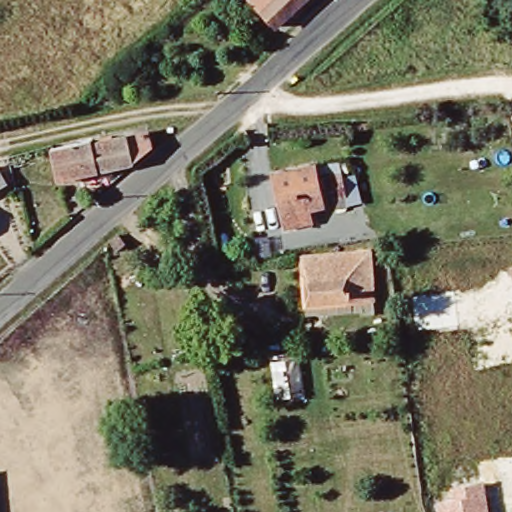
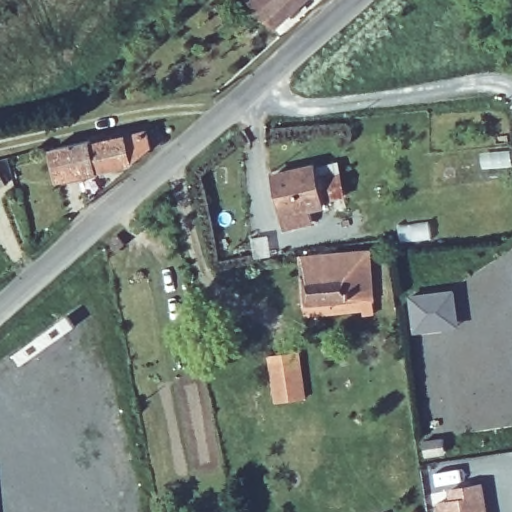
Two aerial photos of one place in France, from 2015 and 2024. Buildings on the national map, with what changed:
new [(251,0),(275,0),(262,12),(251,0)]
unchanged [(262,12),(275,0),(305,0),(276,27),(262,12)]
unchanged [(100,146),(156,135),(159,148),(139,165),(68,179),(62,148),(99,139),(100,146)]
unchanged [(299,223),(288,170),(329,162),(332,178),(355,173),(359,194),(339,199),(340,204),(323,208),(325,217),(299,223)]
unchanged [(9,169),(15,179),(0,189),(0,173),(9,169)]
unchanged [(379,250),(381,303),(314,305),(312,253),(379,250)]
new [(460,327),(411,332),(407,294),(455,289),(460,327)]
new [(273,404),(267,356),(298,353),(305,399),(273,404)]
unchanged [(452,499),(450,489),(483,484),(488,512),(439,512),(437,502),(452,499)]

